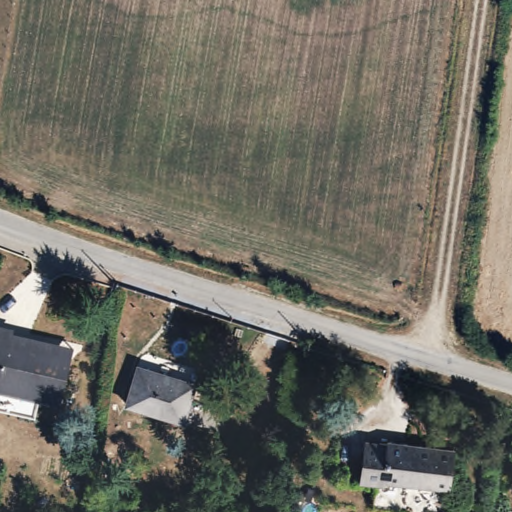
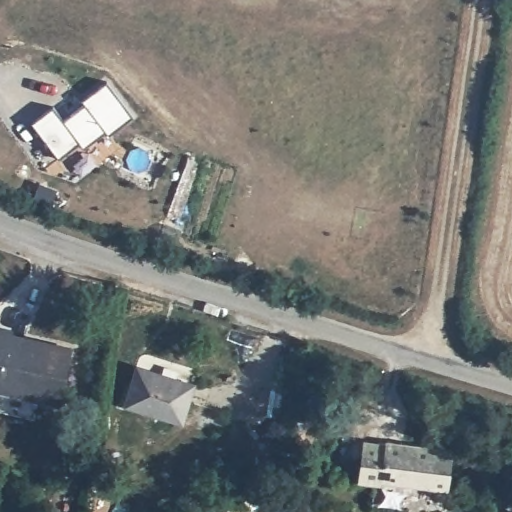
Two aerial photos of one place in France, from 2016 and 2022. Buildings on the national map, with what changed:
new [(54,106),(65,120),(85,104),(82,100),(107,81),(135,117),(110,136),(107,132),(85,149),(81,144),(60,160),(32,123),(54,106)]
unchanged [(0,330),(14,334),(72,349),(69,361),(57,403),(0,390),(0,330)]
unchanged [(122,406),(126,382),(132,385),(137,370),(189,384),(180,420),(122,406)]
unchanged [(377,484),(363,482),(367,439),(391,441),(391,438),(457,446),(450,512),(428,512),(377,505),(377,484)]

